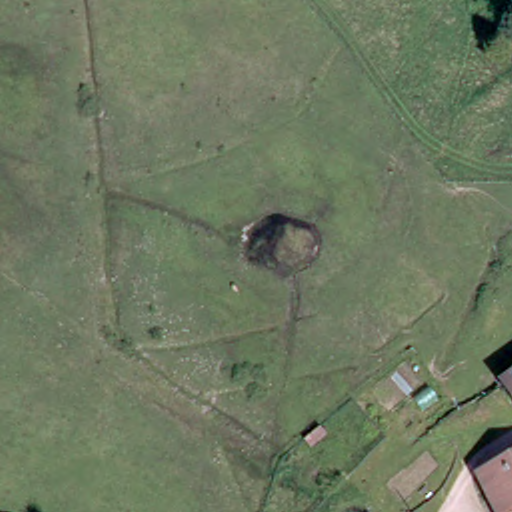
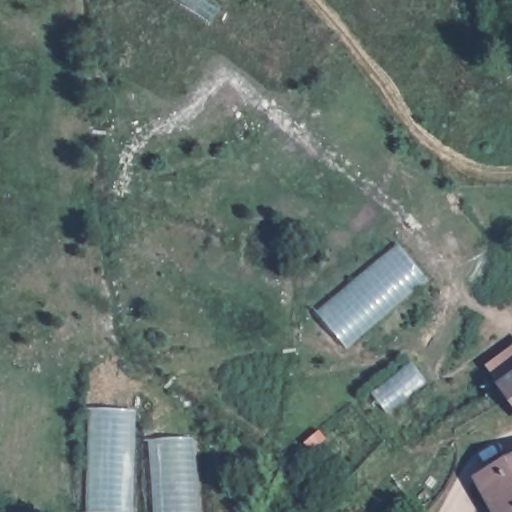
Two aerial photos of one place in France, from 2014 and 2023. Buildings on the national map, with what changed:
new [(398,244),(428,280),(347,348),(315,310),(398,244)]
unchanged [(512,385),(512,406),(501,396),(512,385)]
new [(133,512),(87,512),(89,410),(136,409),(133,512)]
new [(195,437),(199,512),(154,512),(150,440),(195,437)]
unchanged [(512,512),(495,512),(482,493),(512,472),(512,512)]

